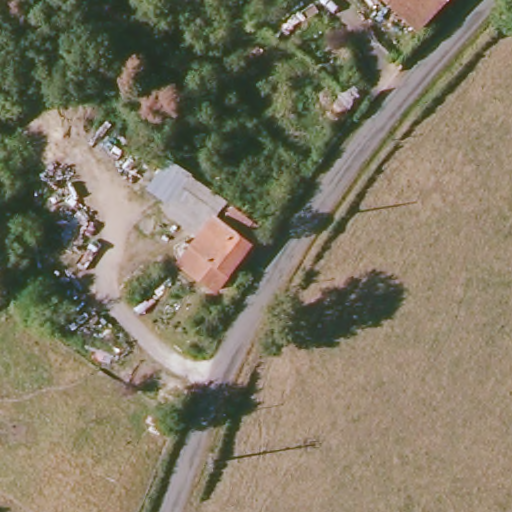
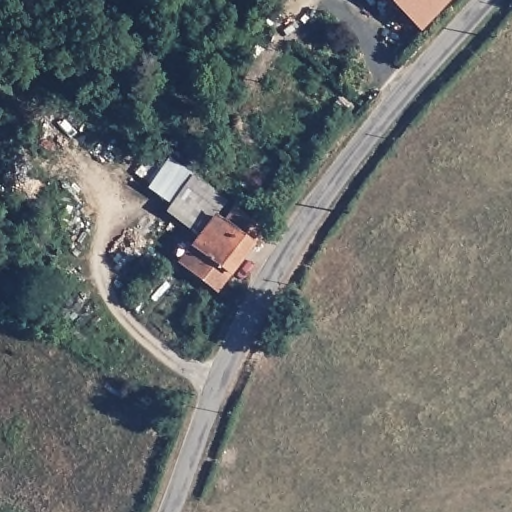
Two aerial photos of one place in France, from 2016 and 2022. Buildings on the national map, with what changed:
unchanged [(419,32),(387,0),(449,0),(419,32)]
unchanged [(199,235),(166,213),(172,204),(148,190),(170,157),(195,175),(193,178),(228,202),(216,214),(199,235)]
unchanged [(180,262),(191,245),(199,235),(216,214),(224,221),(235,207),(265,231),(256,244),(232,278),(218,296),(180,262)]

